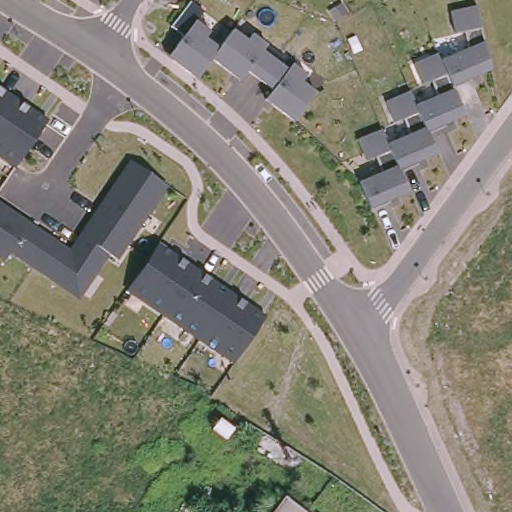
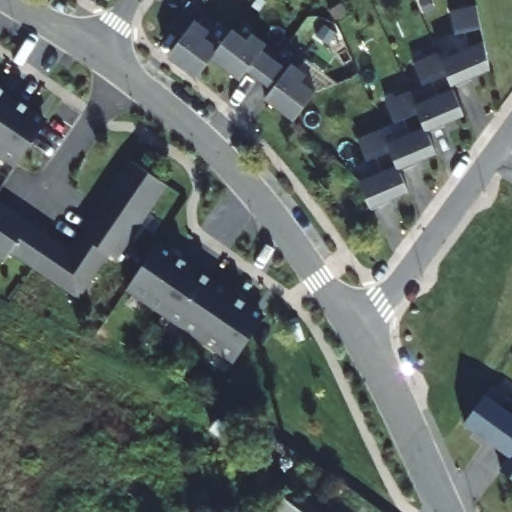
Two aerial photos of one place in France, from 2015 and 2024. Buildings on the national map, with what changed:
unchanged [(168,56),(185,34),(171,25),(191,0),(205,10),(198,20),(212,29),(207,37),(219,46),(234,28),(247,38),(253,31),(269,43),(294,61),(310,74),(304,80),(317,91),(294,120),(265,99),(272,89),(247,69),(240,79),(211,58),(198,77),(168,56)]
unchanged [(359,180),(382,170),(376,156),(365,160),(357,139),(383,129),(387,141),(409,132),(404,119),(390,125),(380,104),(417,89),(409,65),(462,44),(460,33),(455,34),(450,10),(478,4),(482,27),(485,40),(490,71),(454,85),(465,114),(429,130),(437,154),(400,169),(408,193),(370,209),(359,180)]
unchanged [(0,158),(0,87),(45,118),(13,166),(0,158)]
unchanged [(106,251),(75,299),(7,254),(0,260),(0,200),(67,243),(127,155),(167,184),(119,259),(106,251)]
unchanged [(233,361),(122,291),(155,243),(266,313),(233,361)]
new [(502,471),(510,457),(465,425),(487,396),(492,387),(512,400),(507,411),(512,414),(512,476),(502,471)]
unchanged [(285,499),(301,512),(274,512),(285,499)]

